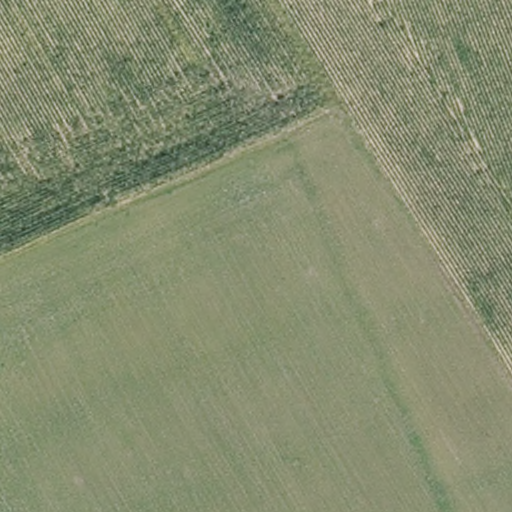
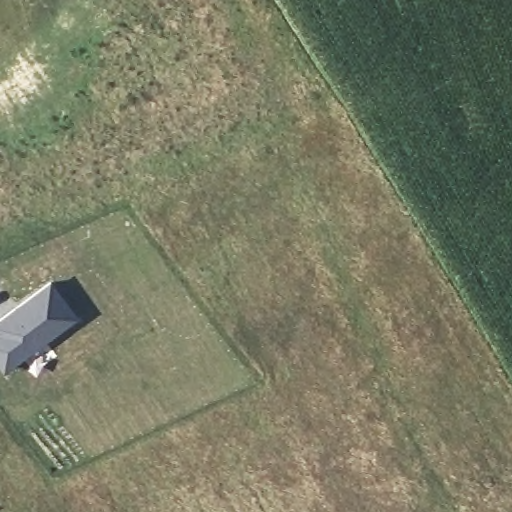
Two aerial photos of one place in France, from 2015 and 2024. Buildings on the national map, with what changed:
new [(81,319),(41,348),(3,373),(0,369),(0,315),(50,278),(81,319)]

